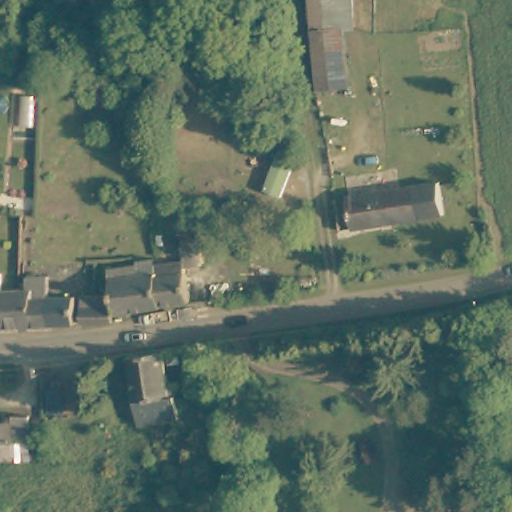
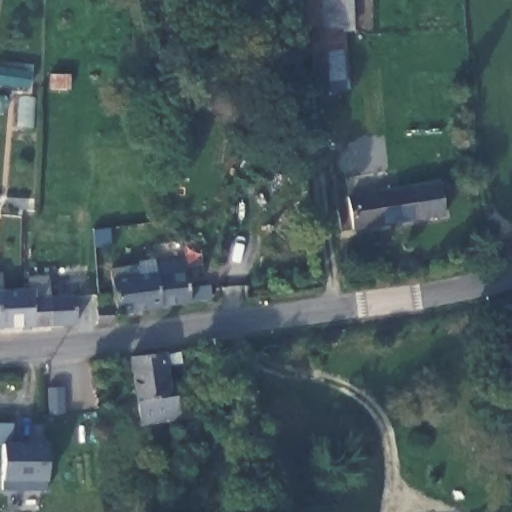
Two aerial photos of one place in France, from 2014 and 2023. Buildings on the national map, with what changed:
unchanged [(358,30),(350,30),(341,31),(308,35),(307,0),(356,0),(358,30)]
unchanged [(310,35),(341,31),(350,30),(357,96),(317,101),(308,35),(310,35)]
unchanged [(432,225),(340,240),(332,199),(426,183),(432,225)]
unchanged [(114,311),(112,275),(155,272),(155,275),(185,273),(187,303),(114,311)]
unchanged [(7,326),(6,289),(32,287),(32,274),(30,274),(52,273),(52,295),(75,295),(75,306),(76,323),(52,325),(7,326)]
unchanged [(7,326),(0,327),(0,289),(6,289),(7,326)]
unchanged [(110,322),(95,323),(95,306),(109,306),(110,312),(110,322)]
unchanged [(170,386),(171,398),(141,400),(135,363),(169,358),(170,386)]
unchanged [(182,421),(142,425),(141,408),(141,400),(171,398),(170,386),(178,385),(182,421)]
new [(2,445),(0,445),(0,424),(12,423),(12,443),(47,444),(46,481),(46,491),(2,490),(1,481),(2,445)]
demolished [(13,425),(35,425),(35,448),(0,448),(0,429),(7,429),(13,425)]

